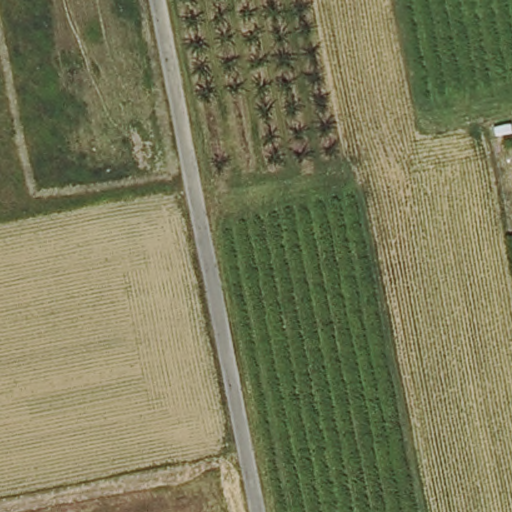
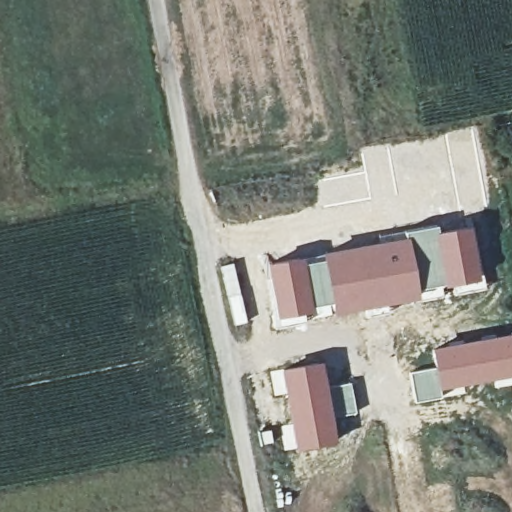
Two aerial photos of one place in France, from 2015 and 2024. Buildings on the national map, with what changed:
new [(435,223),(437,229),(470,223),(481,276),(419,290),(405,233),(435,223)]
new [(405,233),(419,290),(419,295),(332,313),(330,304),(313,309),(275,319),(264,262),(304,255),(320,252),(405,233)]
new [(432,364),(429,346),(512,331),(512,386),(495,389),(492,377),(464,382),(466,394),(442,399),(414,404),(407,370),(432,364)]
new [(350,380),(357,414),(333,419),(337,441),(284,451),(283,444),(289,443),(283,394),(274,396),(269,371),(323,360),(327,384),(350,380)]

